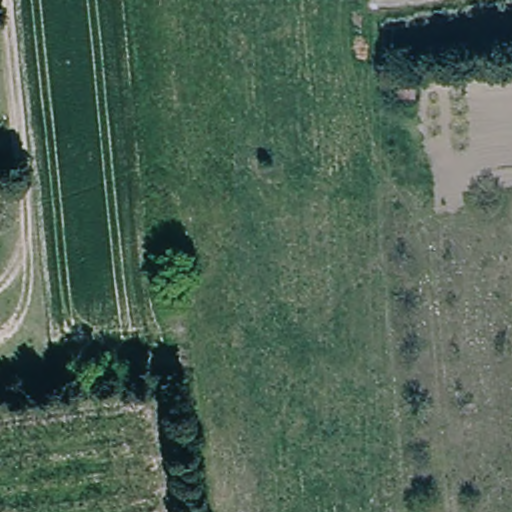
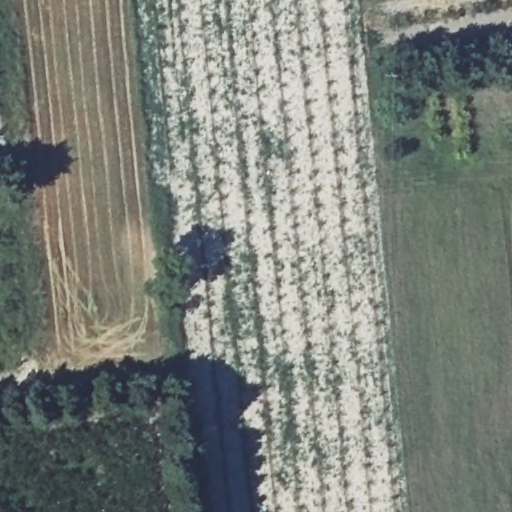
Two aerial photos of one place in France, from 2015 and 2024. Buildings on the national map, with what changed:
unchanged [(419,82),(416,105),(393,106),(392,82),(419,82)]

